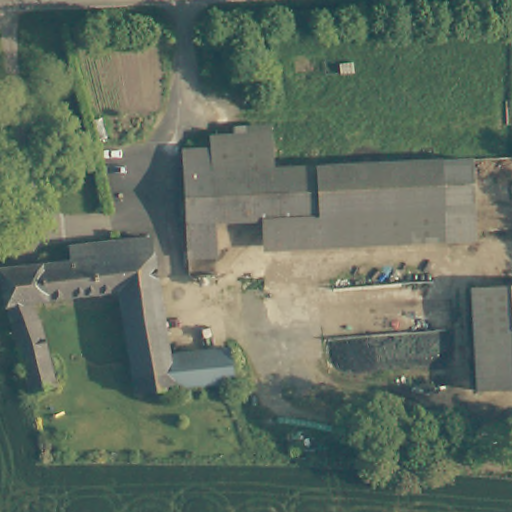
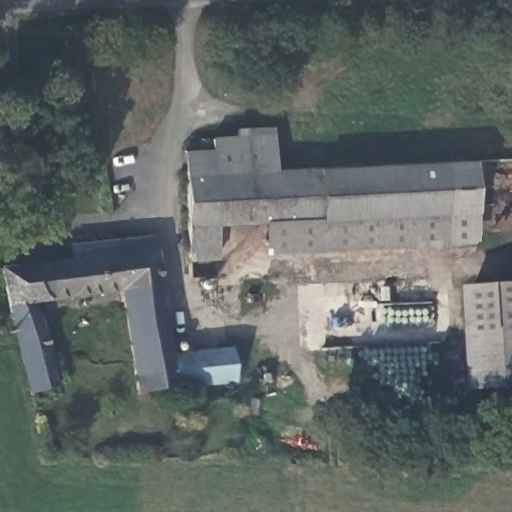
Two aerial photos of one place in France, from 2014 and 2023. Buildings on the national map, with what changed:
unchanged [(263,228),(215,228),(212,179),(211,157),(211,147),(275,145),(277,174),(292,174),(474,172),(475,246),(307,248),(263,248),(263,228)]
unchanged [(211,157),(212,179),(215,228),(216,265),(189,266),(185,197),(184,159),(211,157)]
unchanged [(72,260),(70,247),(156,240),(174,354),(228,348),(236,382),(136,392),(130,361),(121,293),(38,303),(60,383),(30,391),(25,372),(4,269),(72,260)]
unchanged [(512,388),(480,388),(478,287),(512,287),(512,388)]

